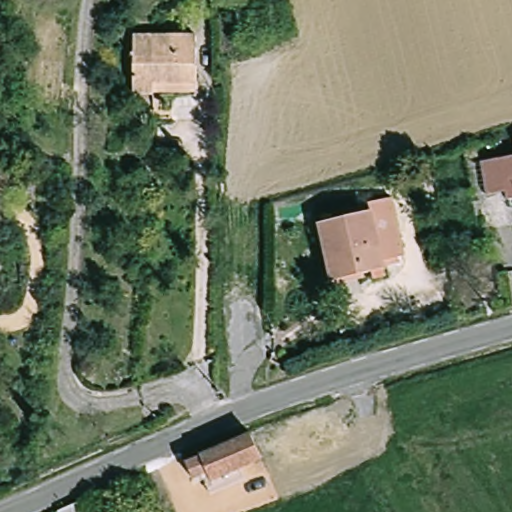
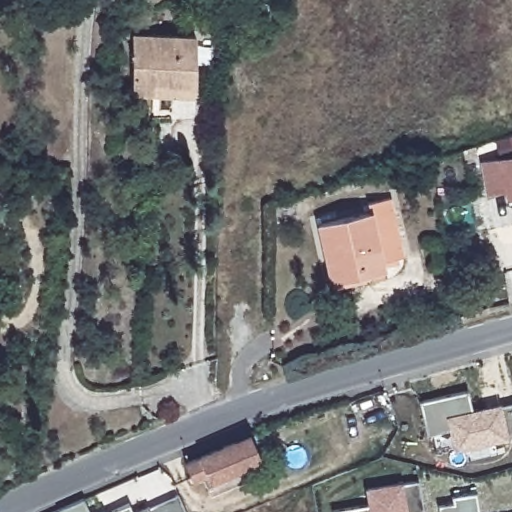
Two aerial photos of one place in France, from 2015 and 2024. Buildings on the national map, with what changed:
unchanged [(237,27),(236,0),(271,0),(271,25),(237,27)]
unchanged [(174,96),(152,96),(152,95),(132,95),(132,36),(195,36),(195,84),(195,96),(174,96)]
unchanged [(512,193),(505,194),(504,186),(486,190),(480,157),(512,152),(512,193)]
unchanged [(33,194),(20,192),(23,175),(36,176),(33,194)]
unchanged [(368,213),(366,203),(390,198),(402,256),(381,261),(383,270),(330,281),(317,224),(368,213)]
new [(512,434),(507,435),(508,438),(455,451),(448,427),(427,433),(420,402),(467,391),(471,410),(500,402),(502,406),(512,404),(512,434)]
unchanged [(215,495),(210,484),(215,481),(210,472),(196,479),(195,475),(190,462),(203,456),(255,435),(265,460),(245,468),(250,480),(215,495)]
demolished [(170,464),(178,483),(155,493),(153,487),(159,485),(153,471),(170,464)]
new [(368,503),(366,488),(418,480),(424,510),(413,512),(332,512),(332,509),(368,503)]
new [(438,505),(453,502),(452,496),(476,491),(480,512),(439,512),(438,505)]
new [(146,508),(177,495),(185,512),(139,512),(146,508)]
demolished [(87,510),(82,512),(56,512),(55,511),(83,499),(87,510)]
new [(88,512),(57,512),(57,511),(83,500),(88,512)]
new [(128,504),(132,512),(110,512),(128,504)]
new [(103,509),(105,512),(97,512),(103,509)]

